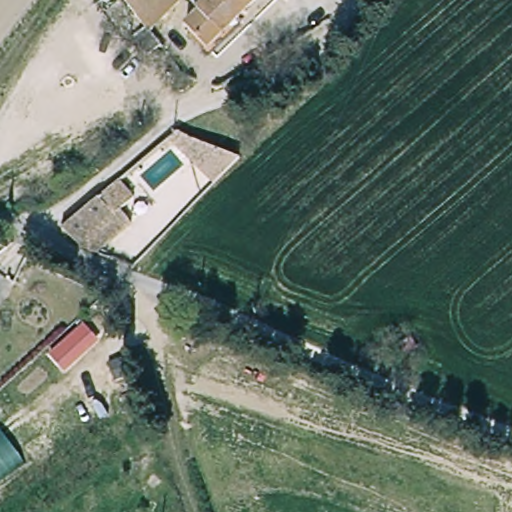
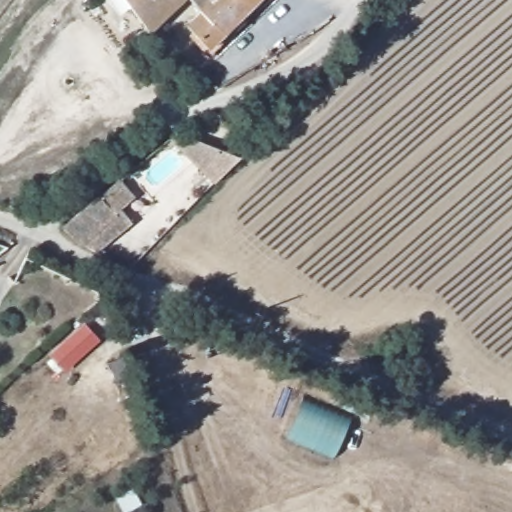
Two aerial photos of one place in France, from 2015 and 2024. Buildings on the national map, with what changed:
unchanged [(158,45),(148,55),(132,36),(141,27),(118,0),(181,0),(147,31),(158,45)]
unchanged [(186,25),(200,11),(190,0),(258,0),(207,47),(186,25)]
unchanged [(300,21),(302,20),(310,36),(297,42),(289,27),(300,21)]
unchanged [(216,181),(170,139),(179,129),(243,157),(216,181)]
unchanged [(121,207),(133,220),(90,254),(63,224),(119,179),(135,195),(121,207)]
unchanged [(49,354),(85,321),(101,338),(66,371),(49,354)]
unchanged [(417,345),(405,355),(399,348),(411,338),(417,345)]
new [(350,420),(334,457),(286,436),(302,400),(350,420)]

